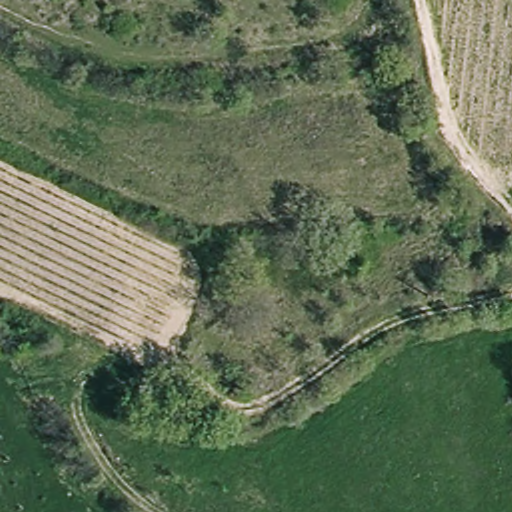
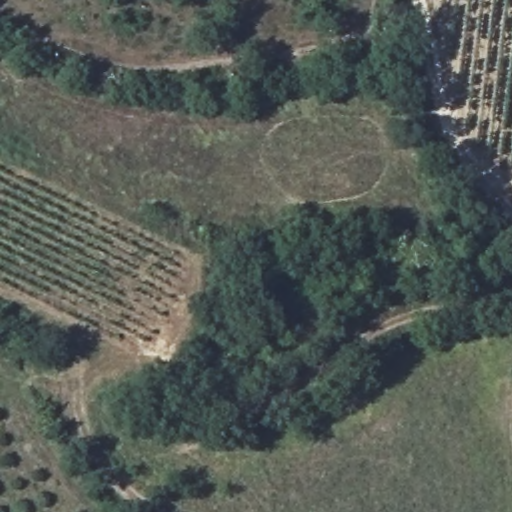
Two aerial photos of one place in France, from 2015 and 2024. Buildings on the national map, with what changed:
unchanged [(153,373),(153,387),(138,387),(138,375),(138,371),(153,370),(153,373)]

